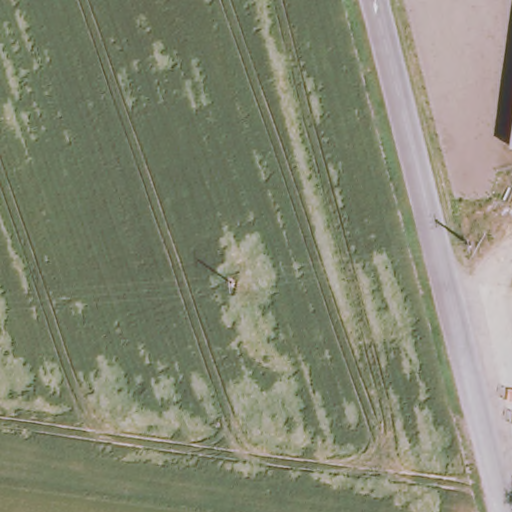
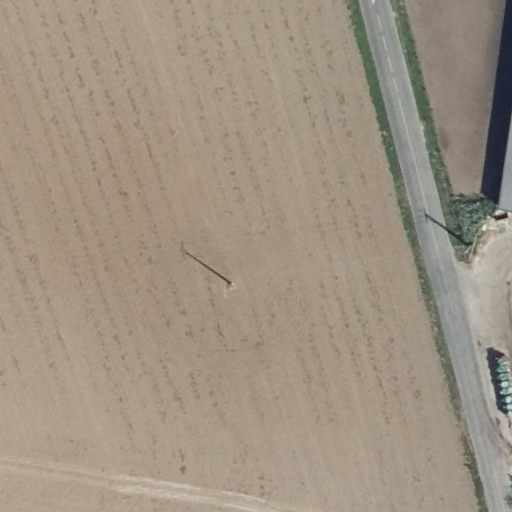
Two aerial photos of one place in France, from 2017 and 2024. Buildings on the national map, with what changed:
new [(512,115),(512,212),(498,210),(512,115)]

